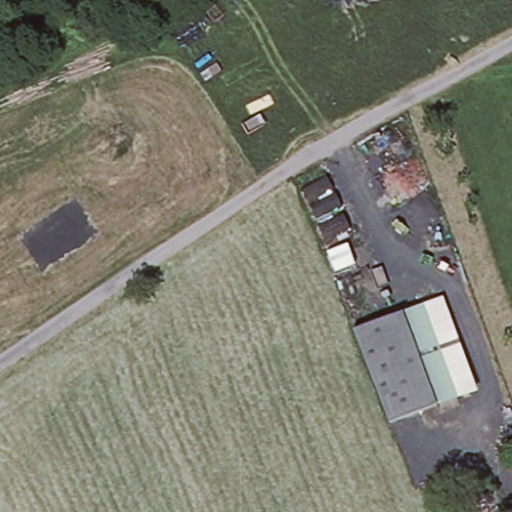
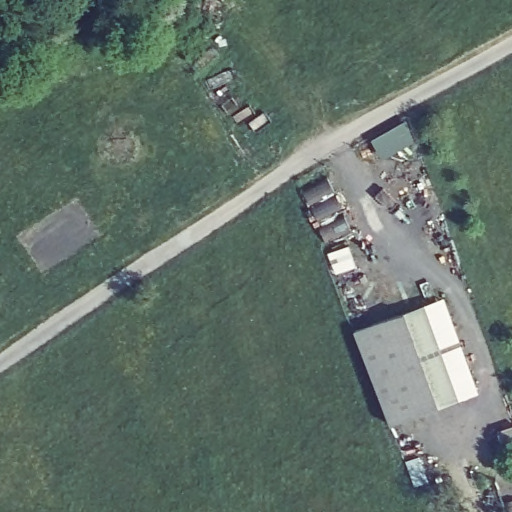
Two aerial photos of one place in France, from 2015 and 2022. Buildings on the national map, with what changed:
new [(406,122),(415,144),(382,159),(373,139),(406,122)]
unchanged [(437,405),(398,313),(445,295),(479,391),(437,405)]
unchanged [(396,309),(398,313),(437,405),(384,425),(347,327),(396,309)]

